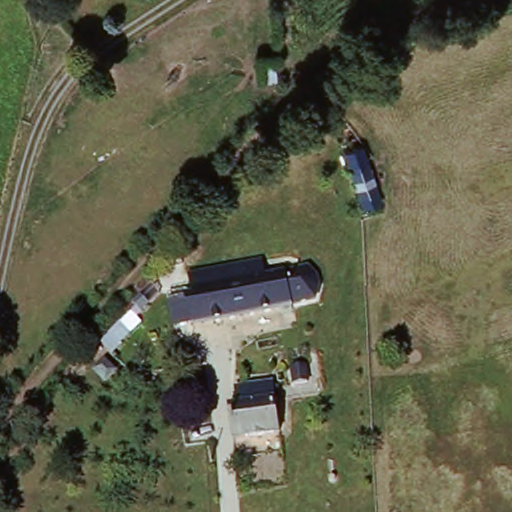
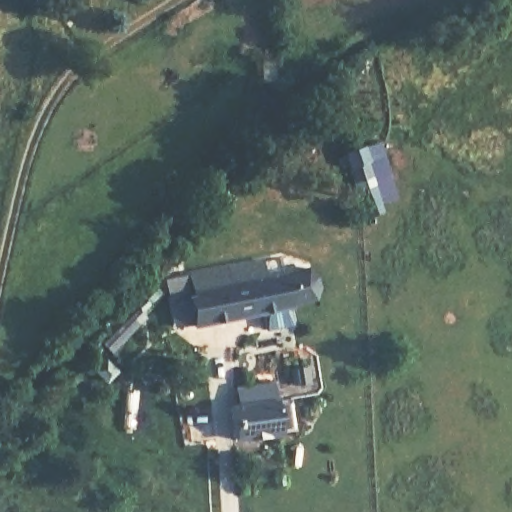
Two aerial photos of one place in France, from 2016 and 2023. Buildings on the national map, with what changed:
unchanged [(256,56),(284,53),(290,79),(259,84),(256,56)]
new [(395,198),(381,204),(384,212),(364,217),(343,152),(363,146),(368,160),(383,156),(395,198)]
unchanged [(302,254),(312,302),(295,305),(288,276),(268,280),(264,262),(302,254)]
unchanged [(268,280),(288,276),(295,305),(295,307),(197,327),(188,277),(264,262),(268,280)]
unchanged [(145,289),(153,297),(91,364),(83,356),(145,289)]
unchanged [(236,442),(231,409),(242,407),(239,392),(276,386),(283,436),(236,442)]

